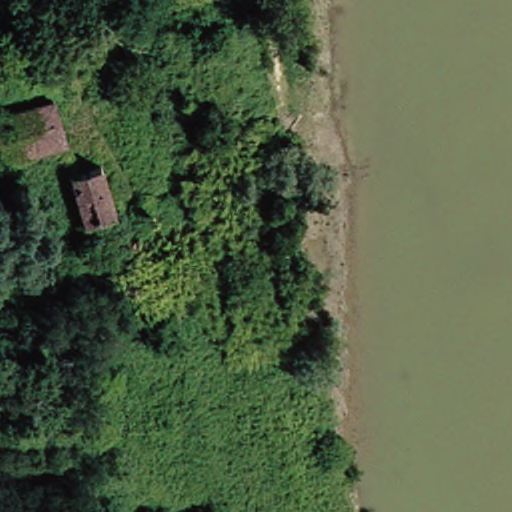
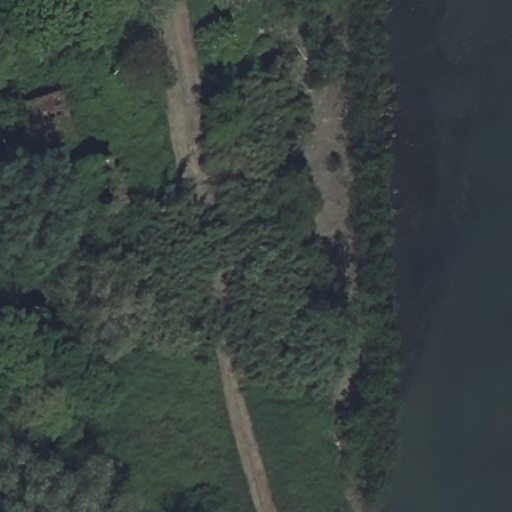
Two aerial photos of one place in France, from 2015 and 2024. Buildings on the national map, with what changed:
unchanged [(0,117),(54,103),(65,144),(0,162),(0,117)]
unchanged [(91,221),(85,222),(72,174),(105,166),(127,250),(100,257),(91,221)]

